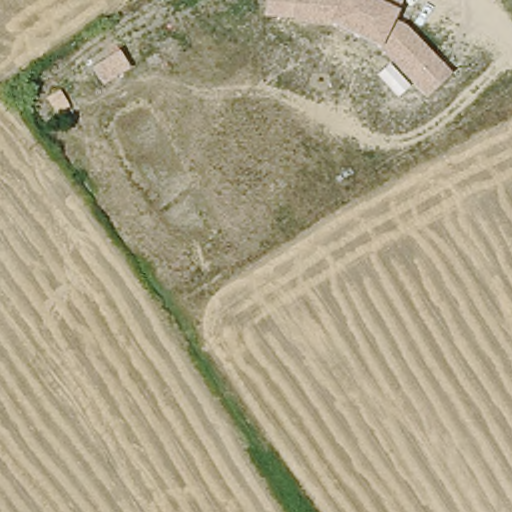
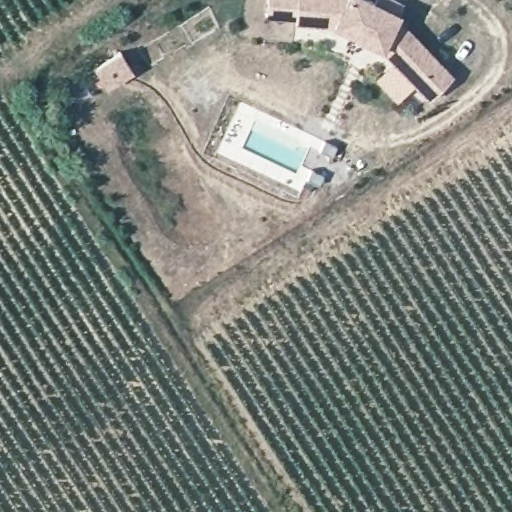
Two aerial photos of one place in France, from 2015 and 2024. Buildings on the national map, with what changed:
unchanged [(382,49),(380,49),(332,25),(334,20),(297,22),(297,17),(267,15),(268,0),(370,0),(375,2),(375,0),(399,0),(404,2),(400,12),(397,17),(407,24),(454,74),(427,97),(382,49)]

